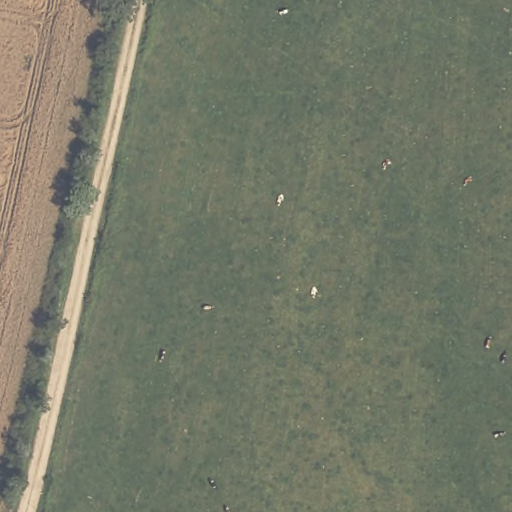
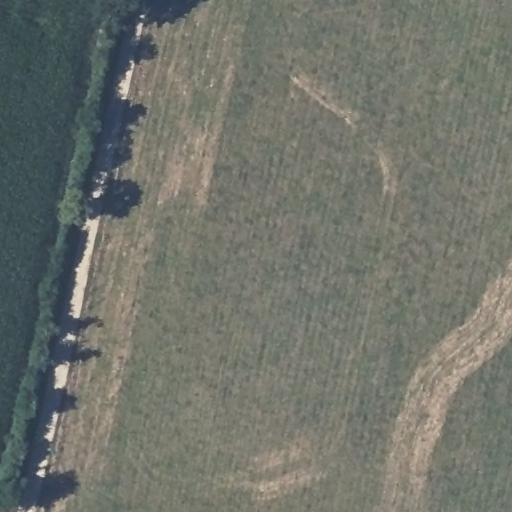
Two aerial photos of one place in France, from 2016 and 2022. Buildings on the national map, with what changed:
[]

